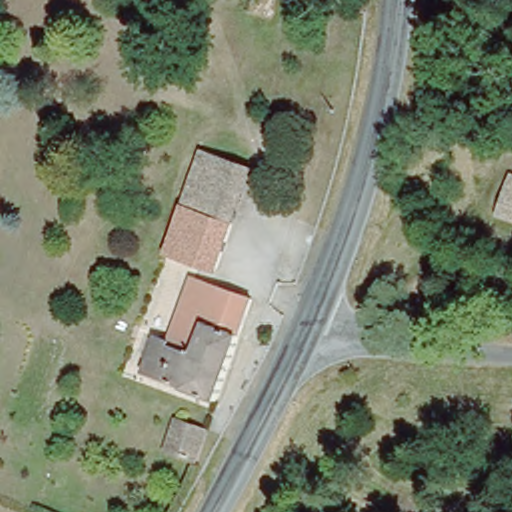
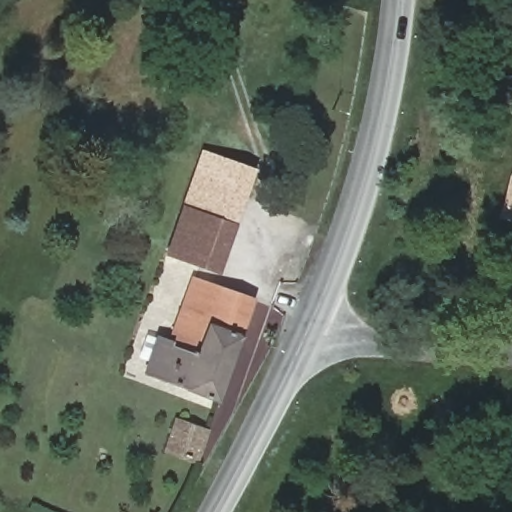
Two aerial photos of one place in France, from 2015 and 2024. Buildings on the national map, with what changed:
unchanged [(235,221),(190,206),(209,154),(254,172),(235,221)]
unchanged [(512,203),(512,219),(507,218),(512,203)]
unchanged [(216,269),(174,254),(190,206),(235,221),(216,269)]
unchanged [(428,226),(425,237),(440,243),(430,264),(400,251),(410,219),(428,226)]
unchanged [(160,341),(171,345),(194,278),(252,298),(216,403),(146,377),(160,341)]
unchanged [(212,432),(191,472),(176,466),(185,450),(170,443),(178,418),(212,432)]

